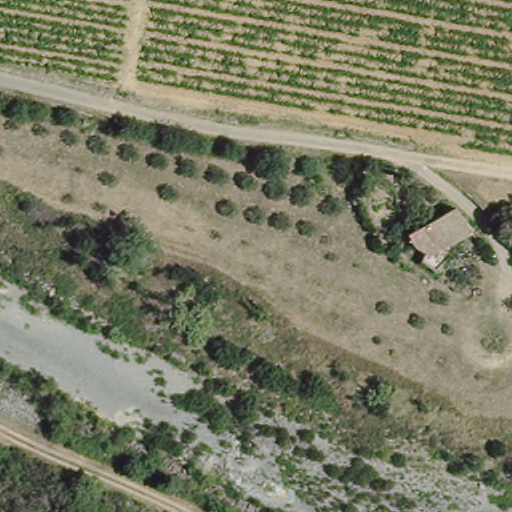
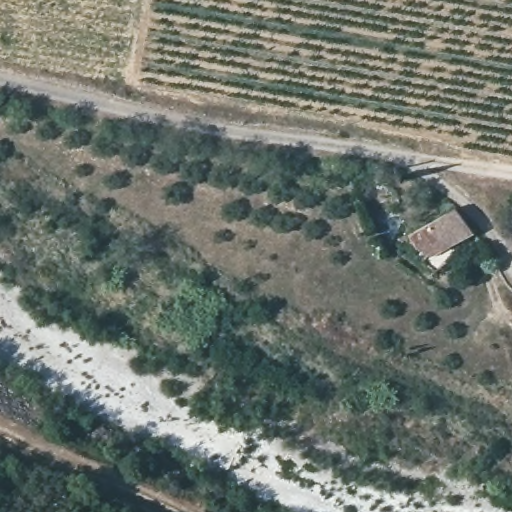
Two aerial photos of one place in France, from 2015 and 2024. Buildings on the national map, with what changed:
unchanged [(445,274),(426,266),(431,256),(416,234),(445,211),(467,235),(455,243),(463,253),(450,262),(445,274)]

